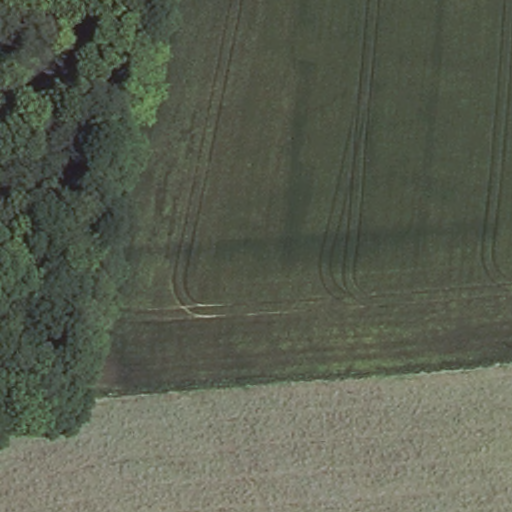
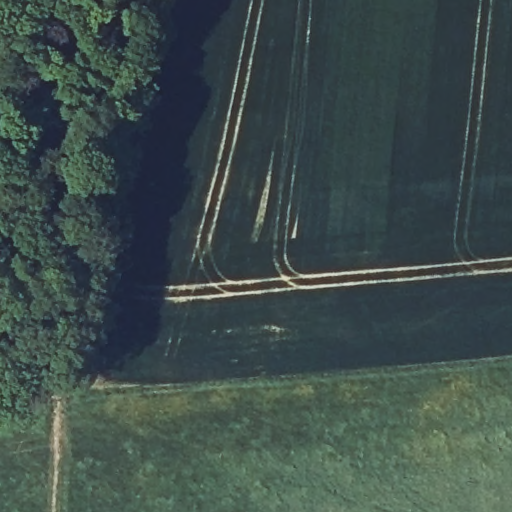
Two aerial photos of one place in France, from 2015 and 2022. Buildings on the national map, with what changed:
[]

